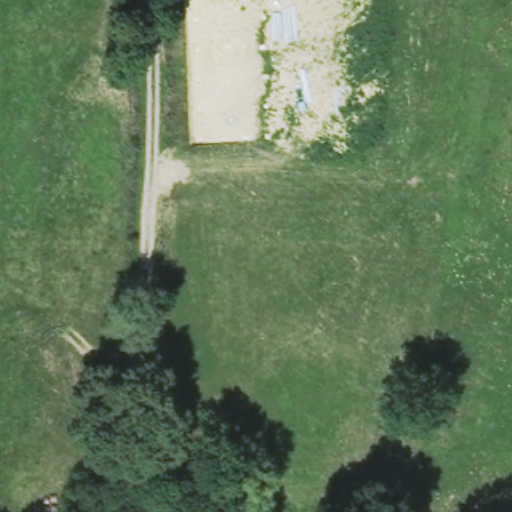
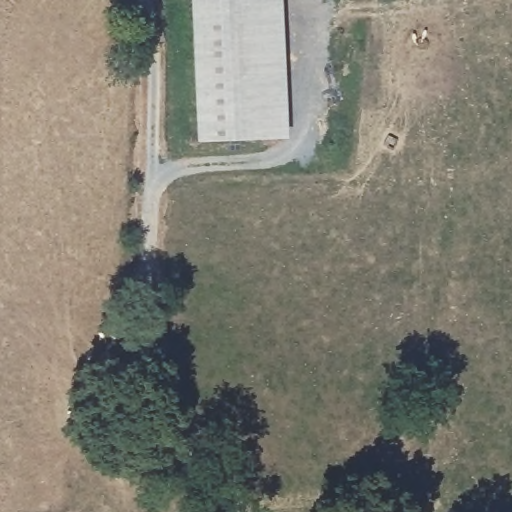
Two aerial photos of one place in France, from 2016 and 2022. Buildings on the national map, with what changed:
new [(199,142),(193,0),(285,0),(290,139),(199,142)]

